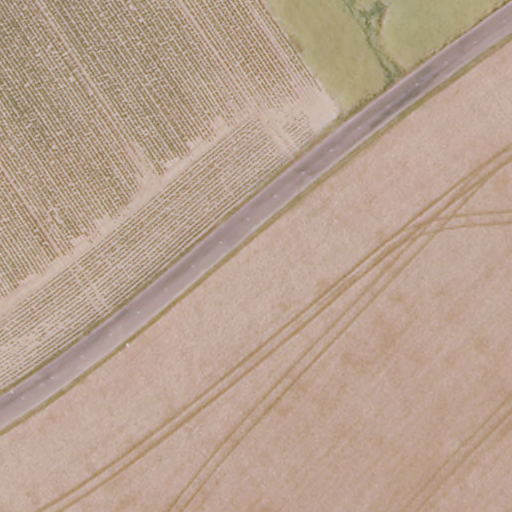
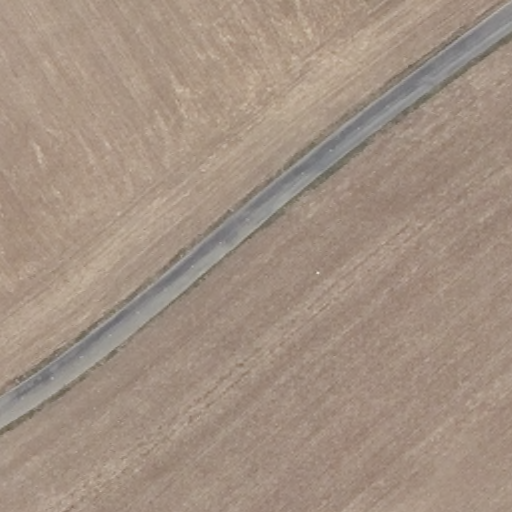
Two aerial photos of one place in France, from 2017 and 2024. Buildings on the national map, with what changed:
[]

